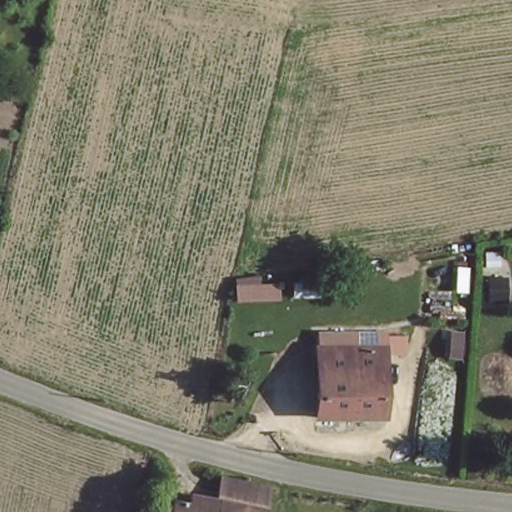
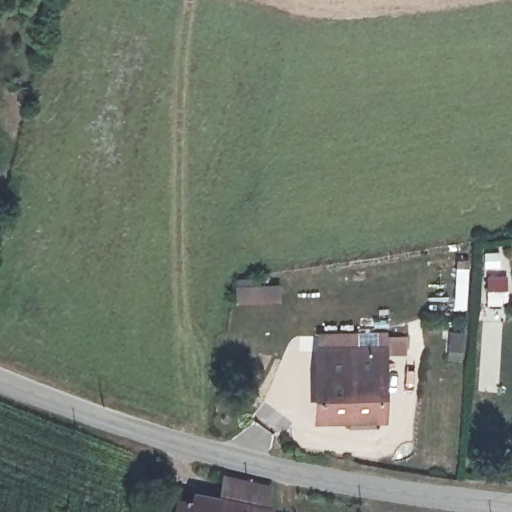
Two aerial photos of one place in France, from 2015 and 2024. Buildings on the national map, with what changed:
unchanged [(499,302),(501,278),(512,278),(512,302),(499,302)]
unchanged [(387,419),(320,419),(321,351),(386,351),(387,419)]
unchanged [(273,498),(270,512),(223,512),(210,509),(217,487),(273,498)]
unchanged [(172,512),(175,504),(210,509),(223,512),(172,512)]
unchanged [(162,512),(158,512),(158,511),(162,512)]

